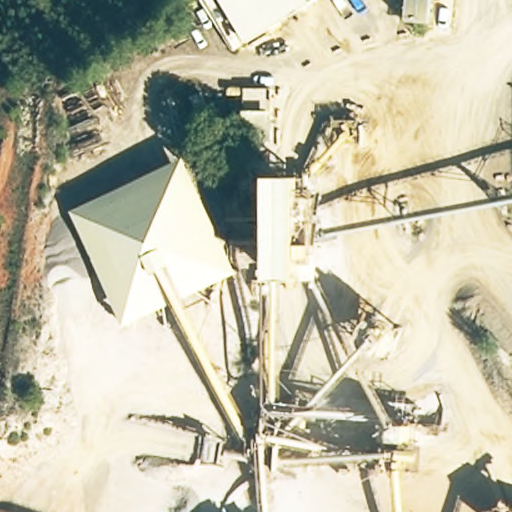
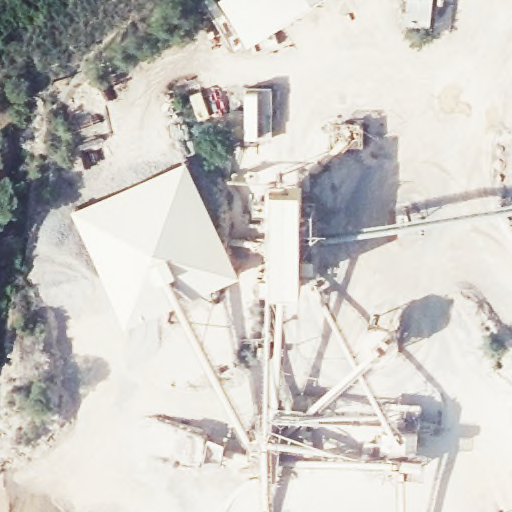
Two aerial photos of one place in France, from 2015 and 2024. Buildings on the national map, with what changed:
unchanged [(310,1),(249,40),(227,0),(309,0),(310,1)]
unchanged [(310,1),(309,0),(313,0),(310,1)]
unchanged [(270,90),(273,143),(243,144),(243,90),(270,90)]
unchanged [(189,151),(239,268),(128,320),(74,206),(189,151)]
unchanged [(305,176),(304,275),(272,273),(274,174),(305,176)]

